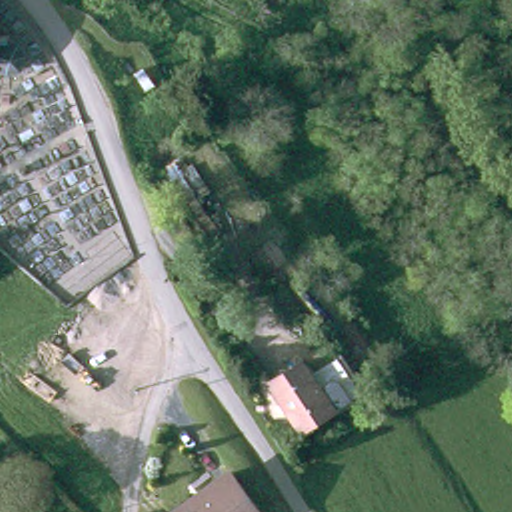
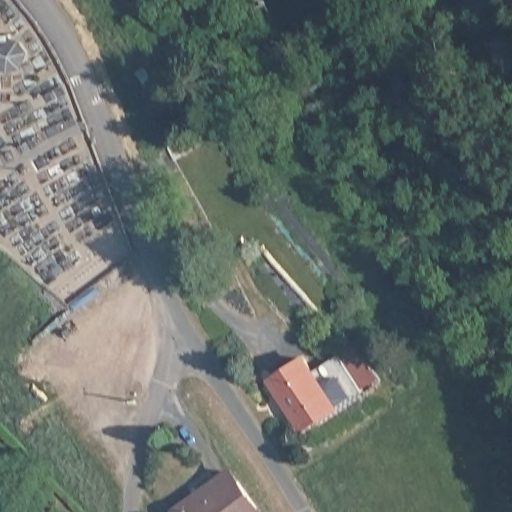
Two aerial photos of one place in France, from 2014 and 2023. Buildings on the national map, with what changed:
unchanged [(21,41),(25,50),(20,62),(7,65),(0,62),(0,33),(21,41)]
unchanged [(327,406),(293,429),(283,413),(286,411),(274,392),(270,394),(260,379),(295,356),(327,406)]
unchanged [(172,502),(200,487),(230,471),(236,483),(238,482),(254,511),(254,512),(178,512),(172,502)]

